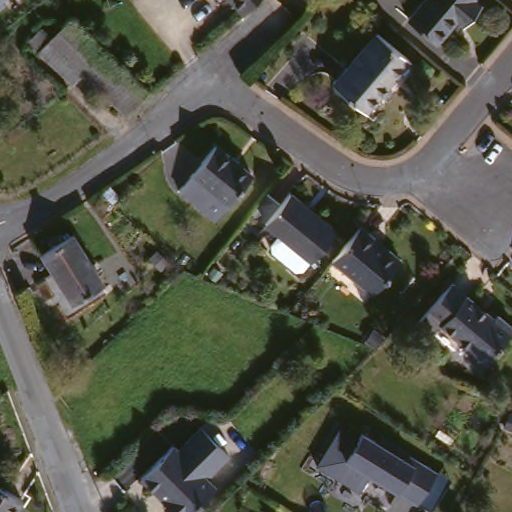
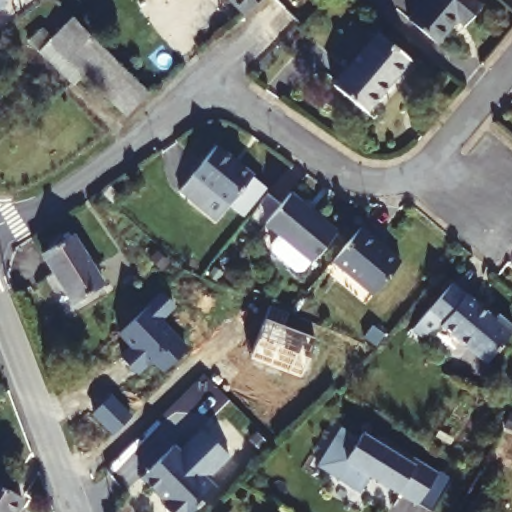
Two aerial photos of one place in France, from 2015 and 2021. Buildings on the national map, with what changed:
unchanged [(5,0),(4,0),(7,5),(0,11),(0,0),(5,0)]
unchanged [(226,0),(251,0),(239,13),(226,0)]
unchanged [(478,0),(479,1),(461,21),(453,14),(432,39),(401,11),(411,0),(478,0)]
unchanged [(152,97),(130,113),(87,68),(72,83),(53,63),(40,49),(75,15),(87,28),(144,89),(152,97)]
unchanged [(332,74),(373,33),(404,63),(363,105),(332,74)]
unchanged [(230,194),(216,210),(200,197),(180,179),(219,136),(254,169),(230,194)]
unchanged [(251,209),(266,192),(278,201),(287,189),(335,229),(310,259),(263,219),(251,209)]
unchanged [(370,289),(330,255),(357,223),(397,255),(370,289)]
unchanged [(102,279),(69,301),(35,253),(69,230),(102,279)]
unchanged [(415,320),(426,307),(450,276),(493,311),(496,308),(512,320),(512,327),(488,357),(440,318),(428,332),(415,320)]
new [(161,292),(175,306),(160,319),(187,347),(164,369),(153,359),(139,372),(121,354),(132,345),(120,333),(124,329),(161,292)]
new [(270,305),(288,313),(282,327),(315,340),(300,377),(265,363),(250,356),(250,353),(270,305)]
new [(111,397),(132,417),(115,434),(94,413),(111,397)]
unchanged [(180,444),(185,449),(191,443),(207,426),(236,454),(220,471),(214,478),(222,487),(198,512),(178,512),(172,507),(175,503),(159,487),(148,477),(159,466),(180,444)]
unchanged [(350,461),(366,473),(357,490),(316,466),(338,426),(358,440),(362,434),(369,438),(350,461)]
unchanged [(374,432),(400,452),(404,448),(441,474),(418,503),(375,472),(366,473),(350,461),(374,432)]
unchanged [(20,496),(11,512),(0,512),(0,486),(20,496)]

